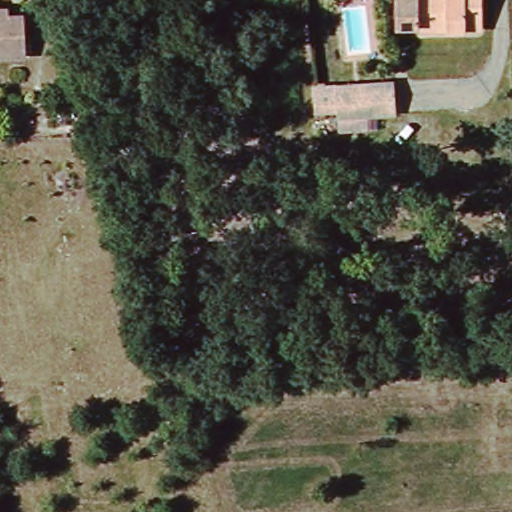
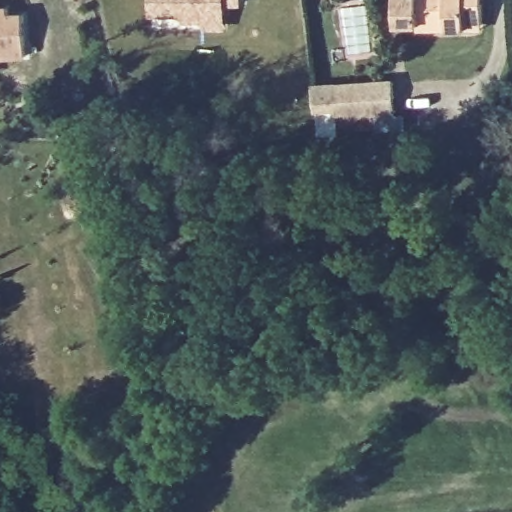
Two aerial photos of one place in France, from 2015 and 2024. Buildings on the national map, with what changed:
new [(150,15),(151,0),(243,0),(243,4),(226,5),(226,29),(207,30),(206,22),(185,21),(185,15),(150,15)]
unchanged [(397,0),(485,0),(486,26),(397,28),(397,0)]
unchanged [(11,18),(26,20),(27,59),(0,60),(0,13),(10,12),(11,18)]
unchanged [(397,109),(340,113),(337,85),(395,80),(397,109)]

